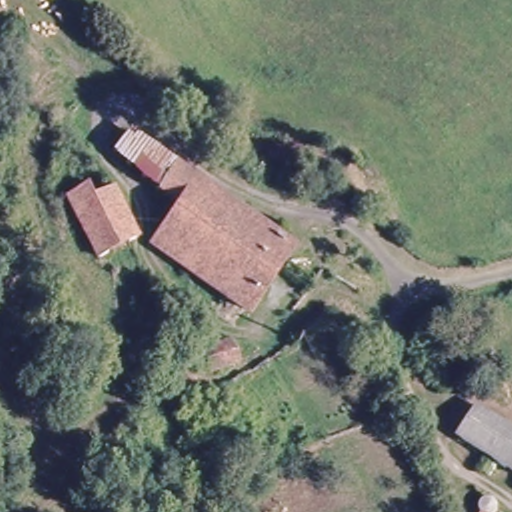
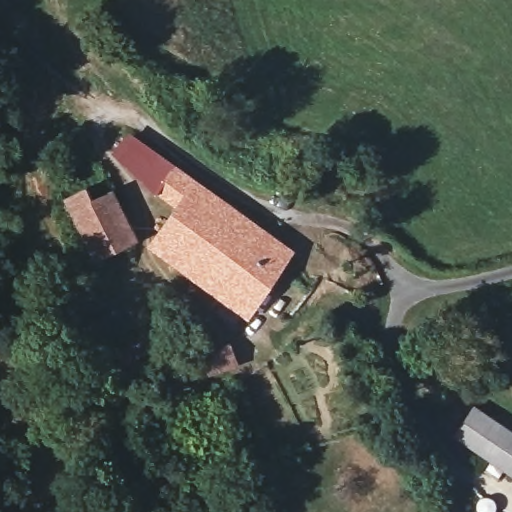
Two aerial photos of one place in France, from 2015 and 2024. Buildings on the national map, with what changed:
unchanged [(156,194),(110,156),(109,155),(121,126),(176,165),(156,194)]
unchanged [(233,325),(206,306),(213,290),(149,244),(169,205),(156,194),(176,165),(288,247),(287,250),(233,325)]
unchanged [(64,200),(88,187),(96,203),(114,193),(134,231),(92,254),(64,200)]
unchanged [(284,307),(298,287),(317,301),(305,321),(299,317),(284,307)]
unchanged [(195,347),(218,334),(261,335),(207,367),(195,347)]
unchanged [(439,372),(447,365),(455,373),(448,380),(439,372)]
unchanged [(469,409),(512,438),(512,477),(450,440),(465,415),(469,409)]

